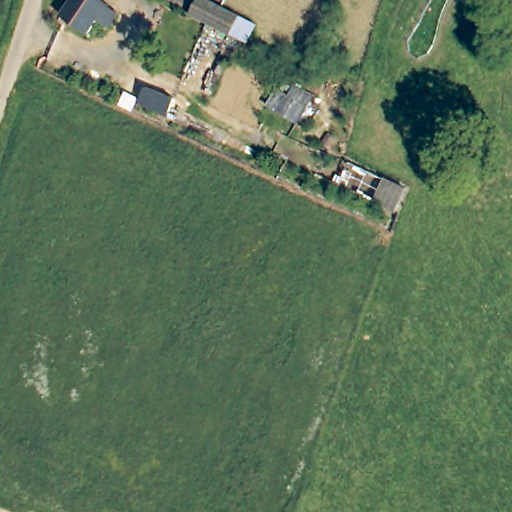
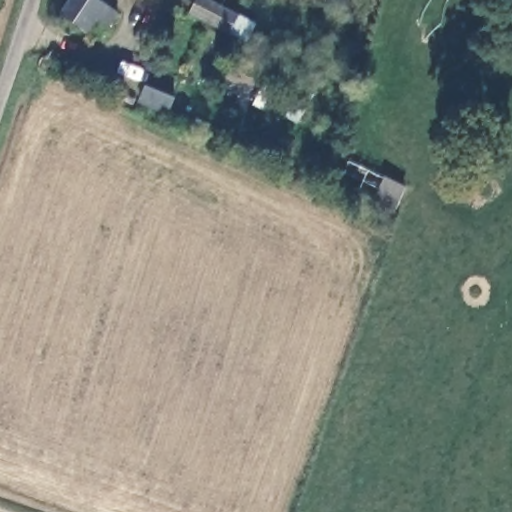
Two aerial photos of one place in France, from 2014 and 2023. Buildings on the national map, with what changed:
unchanged [(96,16),(87,30),(60,12),(68,0),(102,0),(114,8),(105,22),(96,16)]
unchanged [(209,0),(211,0),(229,10),(224,19),(232,24),(229,33),(205,20),(199,17),(209,0)]
unchanged [(176,96),(170,111),(142,99),(149,84),(176,96)]

